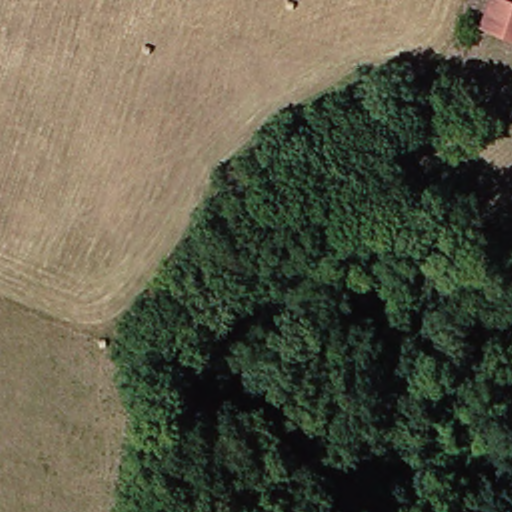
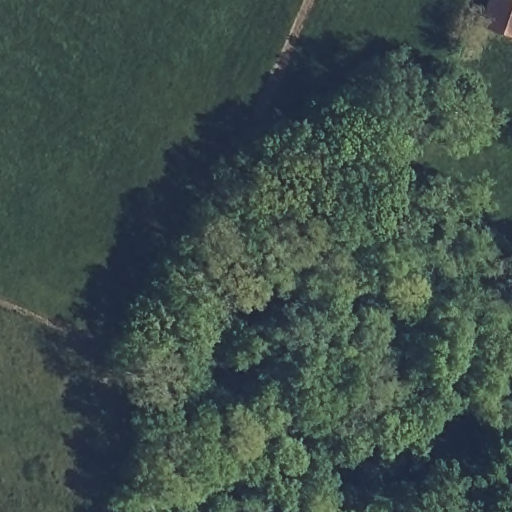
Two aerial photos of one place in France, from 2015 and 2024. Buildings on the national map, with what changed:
unchanged [(512,39),(488,30),(501,0),(512,0),(512,39)]

